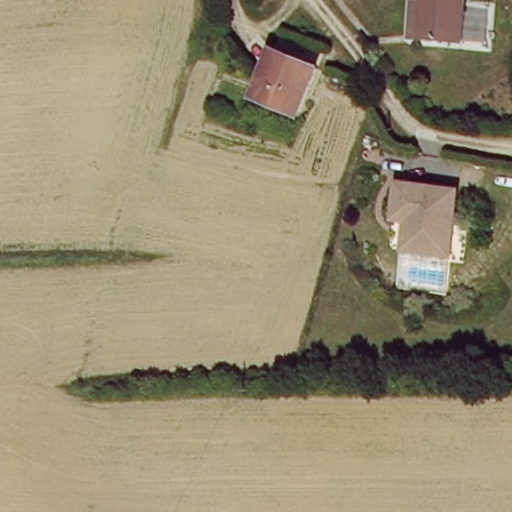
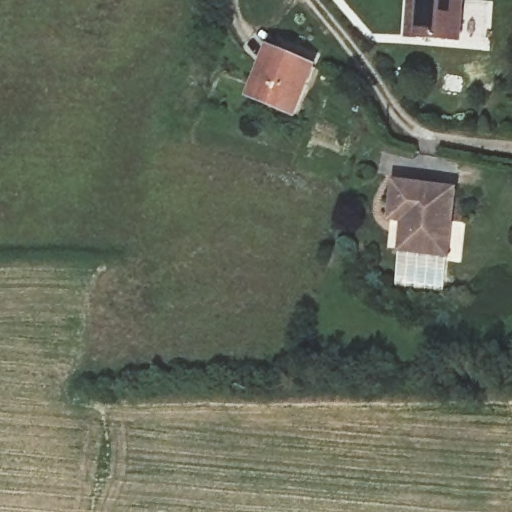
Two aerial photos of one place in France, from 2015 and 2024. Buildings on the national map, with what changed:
unchanged [(420,35),(423,0),(466,0),(462,38),(420,35)]
unchanged [(316,66),(297,113),(253,95),(272,48),(316,66)]
unchanged [(411,227),(399,227),(400,190),(460,190),(460,256),(422,256),(411,256),(411,227)]

